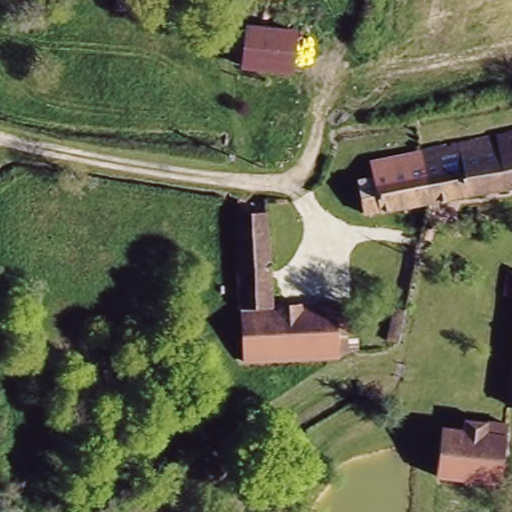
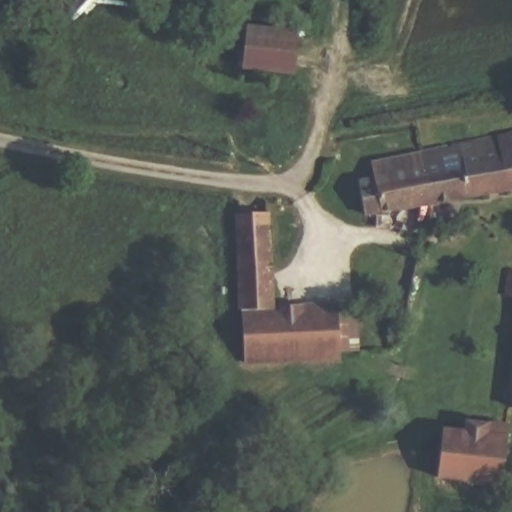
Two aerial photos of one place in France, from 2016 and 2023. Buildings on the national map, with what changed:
unchanged [(240,69),(244,24),(299,30),(292,77),(240,69)]
unchanged [(362,217),(352,181),(374,177),(368,160),(512,132),(512,190),(362,217)]
unchanged [(243,364),(231,214),(265,214),(264,203),(274,204),(274,306),(338,302),(338,315),(357,313),(357,345),(338,345),(340,360),(243,364)]
unchanged [(391,320),(403,253),(422,257),(422,261),(410,324),(391,320)]
unchanged [(504,310),(507,273),(512,273),(512,310),(504,310)]
unchanged [(512,342),(512,392),(508,391),(512,342)]
unchanged [(436,476),(442,426),(464,430),(464,417),(510,424),(504,486),(436,476)]

